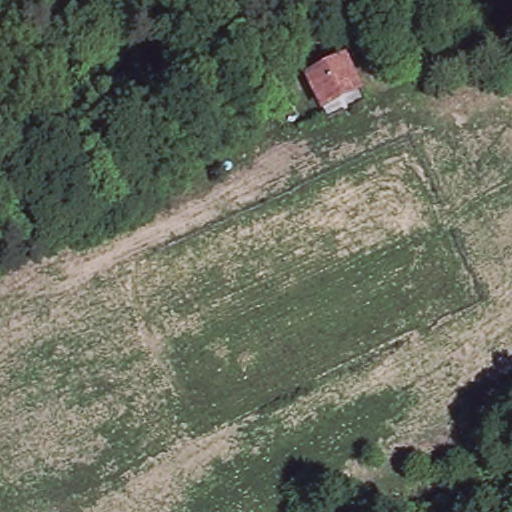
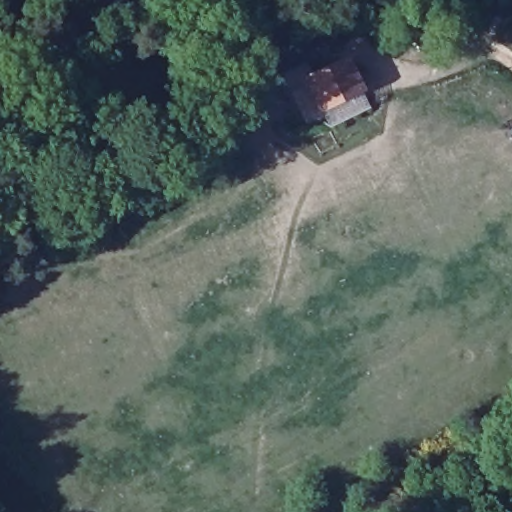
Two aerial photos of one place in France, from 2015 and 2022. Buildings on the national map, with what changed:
unchanged [(362,100),(325,117),(319,103),(306,73),(343,56),(356,86),(362,100)]

